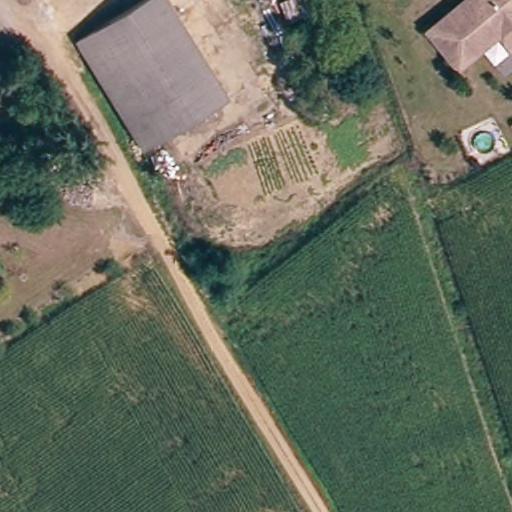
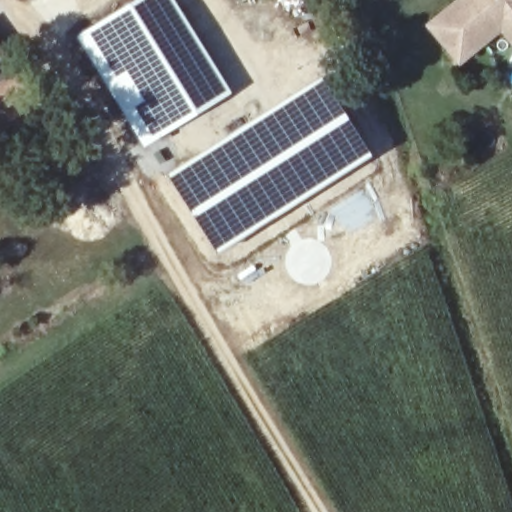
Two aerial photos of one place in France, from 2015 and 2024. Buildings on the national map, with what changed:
unchanged [(81,33),(136,0),(165,0),(190,41),(111,85),(81,33)]
unchanged [(438,21),(470,0),(512,0),(512,29),(465,61),(438,21)]
unchanged [(190,41),(224,97),(146,144),(111,85),(190,41)]
unchanged [(0,62),(0,46),(7,56),(0,62)]
new [(321,75),(371,154),(295,206),(215,255),(164,174),(321,75)]

